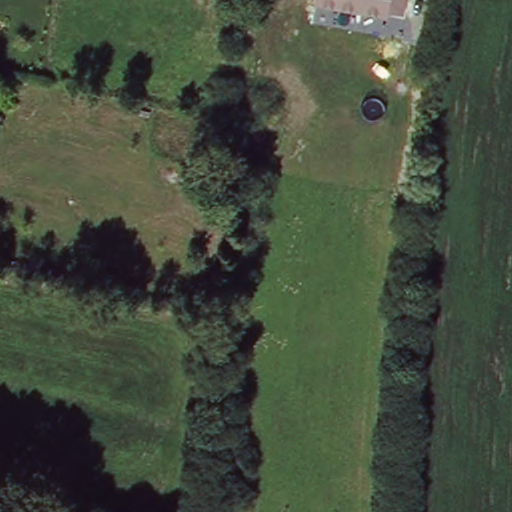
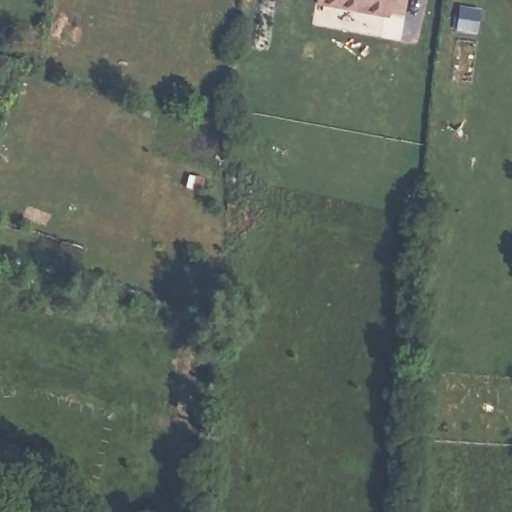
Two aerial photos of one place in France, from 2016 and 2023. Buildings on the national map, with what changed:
unchanged [(388,12),(387,17),(314,4),(315,0),(406,0),(403,15),(388,12)]

